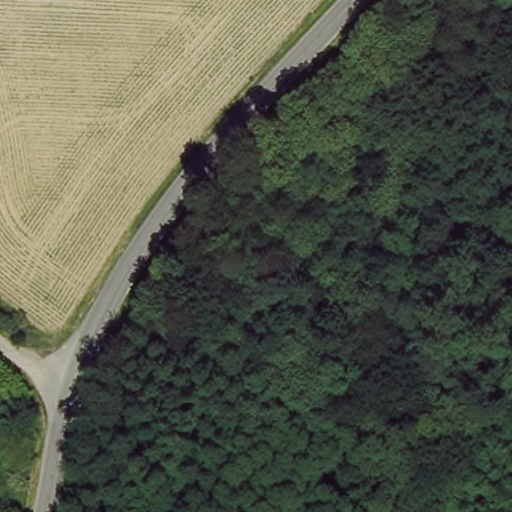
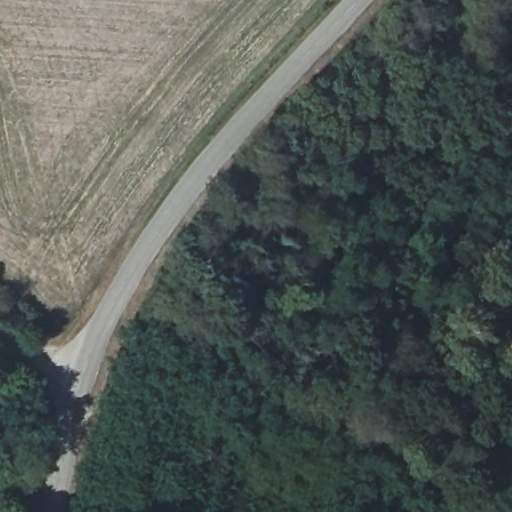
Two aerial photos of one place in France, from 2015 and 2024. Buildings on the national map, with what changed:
[]

